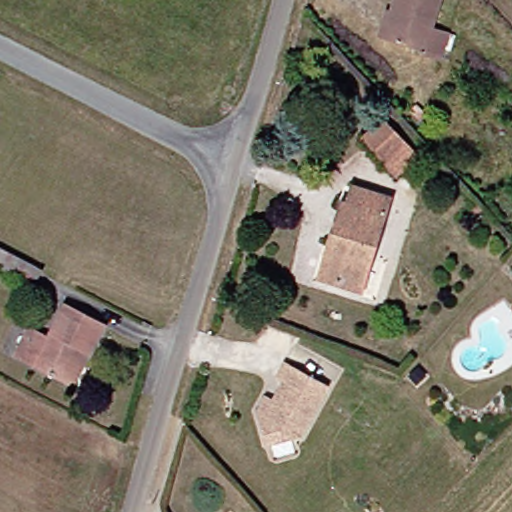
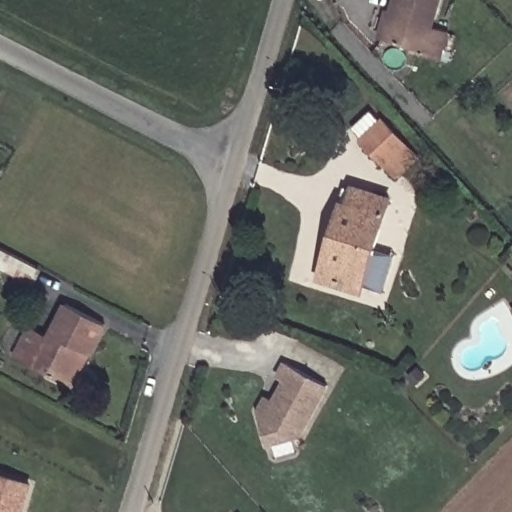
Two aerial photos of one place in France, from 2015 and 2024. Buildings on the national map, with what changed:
unchanged [(433,31),(450,36),(441,65),(424,59),(425,55),(384,44),(397,0),(442,0),(433,31)]
unchanged [(512,60),(512,62),(505,71),(495,65),(502,54),(512,60)]
unchanged [(361,139),(382,119),(406,144),(418,156),(396,177),(385,165),(361,139)]
unchanged [(330,250),(325,249),(338,207),(343,209),(348,192),(385,204),(358,290),(321,279),(330,250)]
unchanged [(28,281),(0,266),(0,248),(36,266),(28,281)]
unchanged [(14,357),(28,327),(49,337),(65,304),(105,323),(90,354),(74,386),(66,382),(14,357)]
unchanged [(262,397),(270,401),(280,381),(273,378),(281,363),(323,386),(296,435),(265,446),(257,423),(255,411),(262,397)]
new [(0,512),(0,470),(35,480),(25,512),(0,512)]

